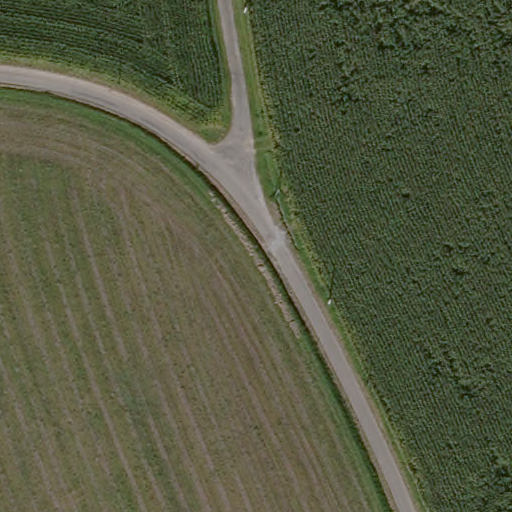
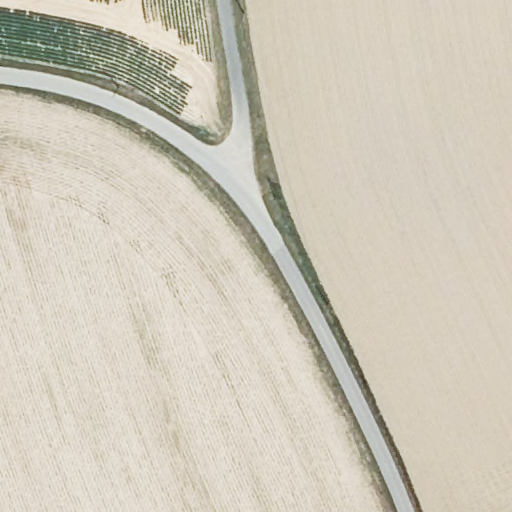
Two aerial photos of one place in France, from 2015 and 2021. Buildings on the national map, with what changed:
[]

